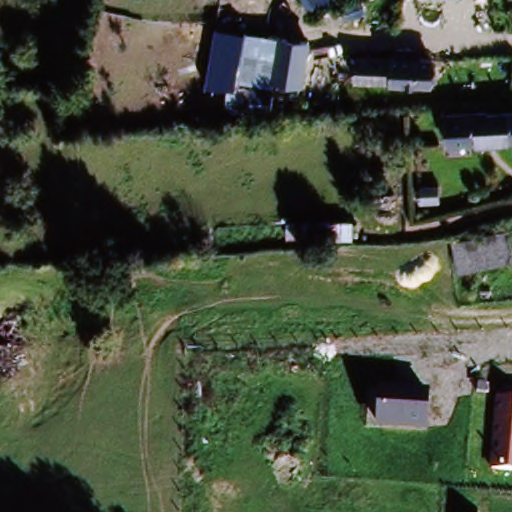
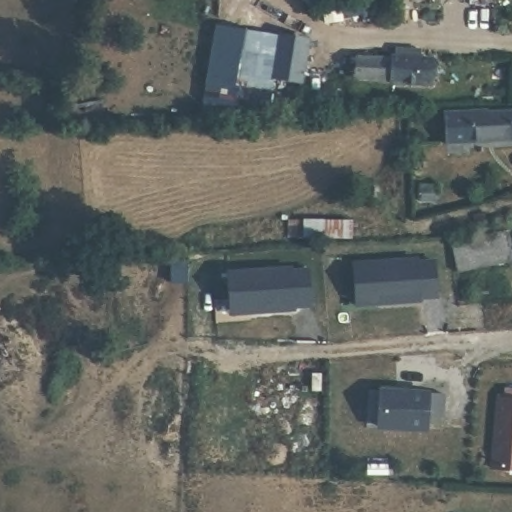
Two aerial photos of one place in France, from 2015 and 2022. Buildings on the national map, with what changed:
unchanged [(270,112),(225,104),(227,90),(205,85),(217,27),(243,35),(235,81),(275,88),(270,112)]
unchanged [(311,45),(303,93),(235,81),(243,35),(311,45)]
unchanged [(372,58),(372,49),(399,50),(398,59),(425,60),(425,84),(351,82),(350,58),(372,58)]
unchanged [(487,114),(512,114),(512,142),(445,142),(444,107),(487,108),(487,114)]
unchanged [(420,188),(438,187),(439,200),(420,200),(420,188)]
new [(353,220),(353,241),(287,239),(287,221),(353,220)]
unchanged [(512,257),(512,262),(458,269),(455,237),(509,230),(512,257)]
new [(417,260),(417,264),(433,262),(436,297),(420,299),(420,301),(356,306),(353,264),(417,260)]
new [(293,269),(292,273),(309,271),(312,305),(295,306),(295,309),(230,314),(227,273),(293,269)]
unchanged [(503,388),(512,389),(512,473),(488,471),(495,397),(502,398),(503,388)]
unchanged [(378,391),(428,394),(426,436),(375,434),(378,391)]

